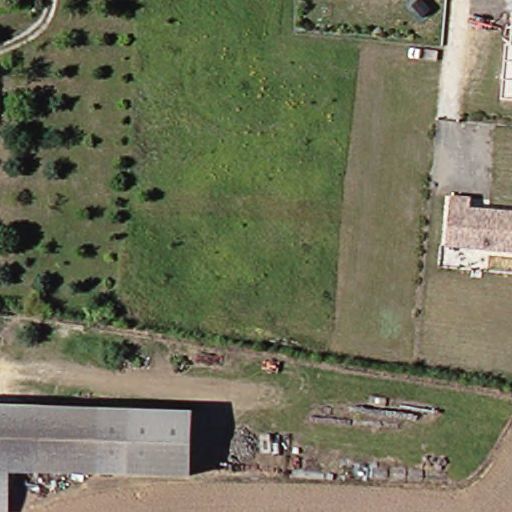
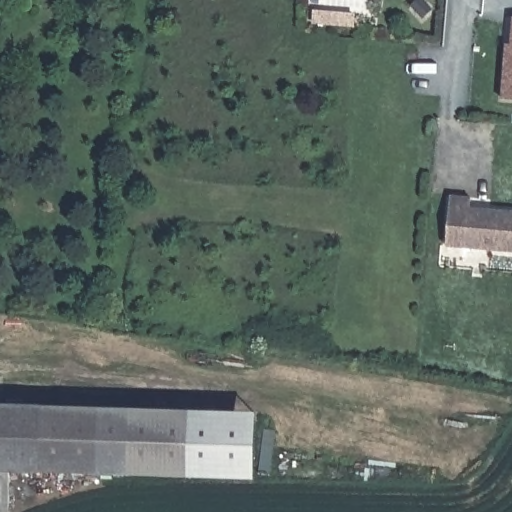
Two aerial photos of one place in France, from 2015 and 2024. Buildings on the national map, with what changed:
new [(505,43),(511,44),(512,33),(512,101),(500,100),(505,43)]
unchanged [(472,204),(480,205),(512,207),(512,247),(476,244),(450,243),(453,192),(473,194),(472,204)]
unchanged [(193,406),(194,471),(12,466),(12,512),(0,512),(0,400),(193,406)]
new [(193,406),(257,407),(256,473),(194,471),(193,406)]

